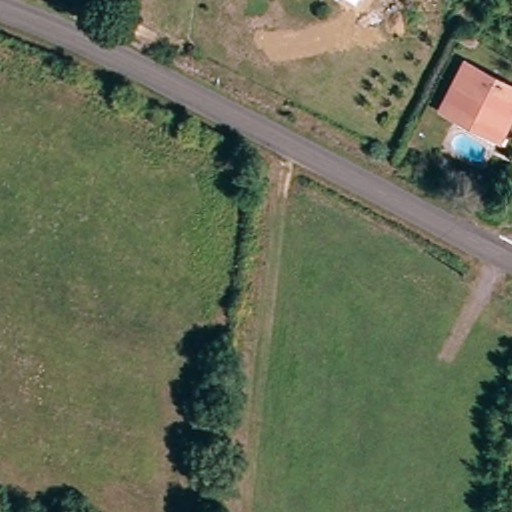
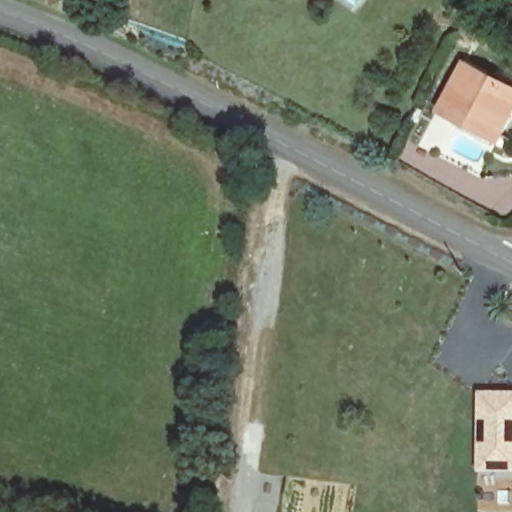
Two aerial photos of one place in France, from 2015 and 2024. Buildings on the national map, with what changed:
unchanged [(458,117),(440,108),(464,62),(512,87),(512,107),(499,132),(498,132),(492,143),(455,124),(458,117)]
new [(512,398),(512,473),(484,473),(485,397),(512,398)]

